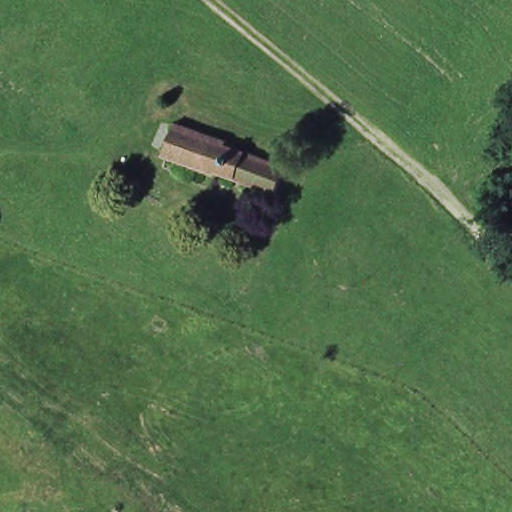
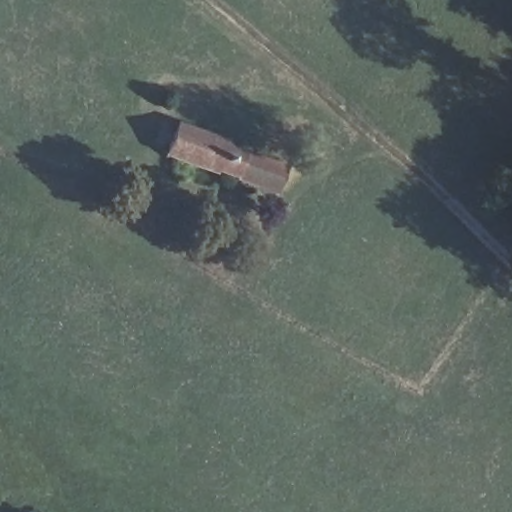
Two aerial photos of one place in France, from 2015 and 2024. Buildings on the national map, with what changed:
unchanged [(166,152),(178,120),(228,137),(226,140),(289,163),(279,189),(217,166),(216,169),(166,152)]

